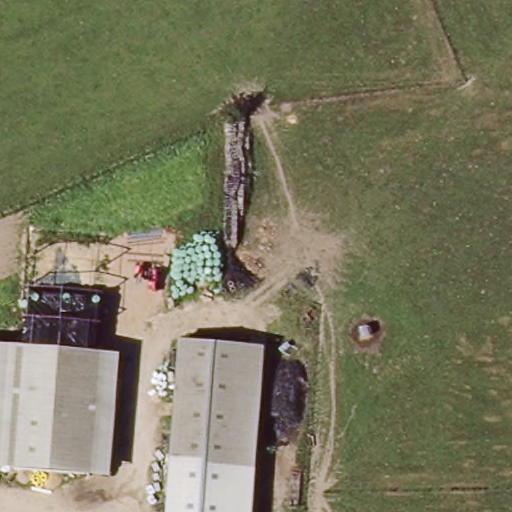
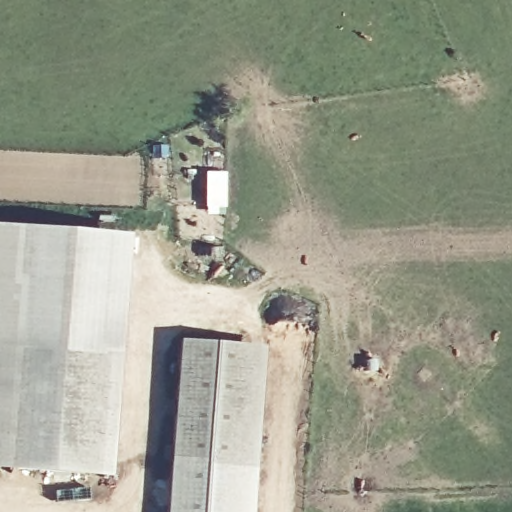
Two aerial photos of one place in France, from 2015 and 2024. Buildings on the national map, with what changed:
new [(130,234),(122,351),(0,344),(0,225),(130,234)]
unchanged [(204,433),(255,459),(254,468),(169,459),(182,340),(216,343),(204,433)]
unchanged [(266,349),(255,459),(204,433),(216,343),(266,349)]
unchanged [(126,352),(114,473),(0,467),(0,344),(126,352)]
unchanged [(251,512),(165,512),(169,459),(254,468),(251,512)]

